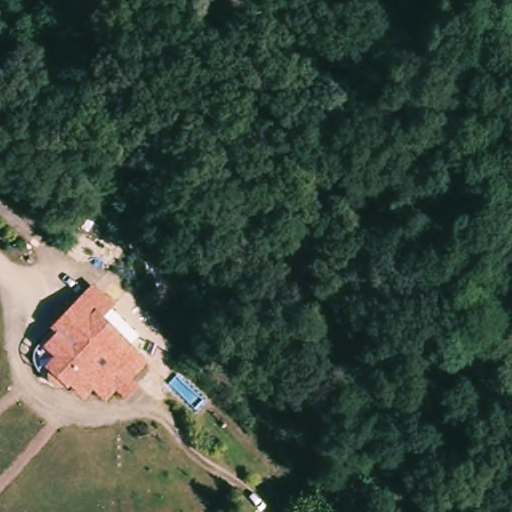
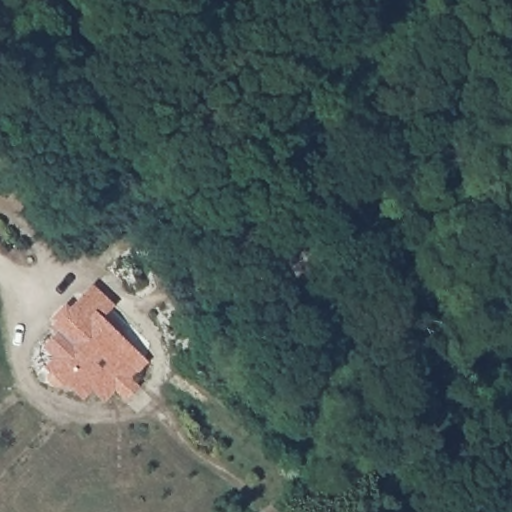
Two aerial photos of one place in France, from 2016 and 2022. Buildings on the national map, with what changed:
unchanged [(338,272),(370,304),(346,330),(313,298),(338,272)]
unchanged [(45,336),(51,330),(45,325),(60,309),(64,312),(87,287),(112,311),(102,321),(147,364),(142,368),(148,374),(135,387),(139,390),(126,402),(115,391),(105,401),(91,387),(82,397),(69,383),(59,394),(55,390),(53,392),(50,394),(45,392),(42,390),(40,387),(40,382),(45,378),(39,373),(49,363),(37,353),(50,341),(45,336)]

